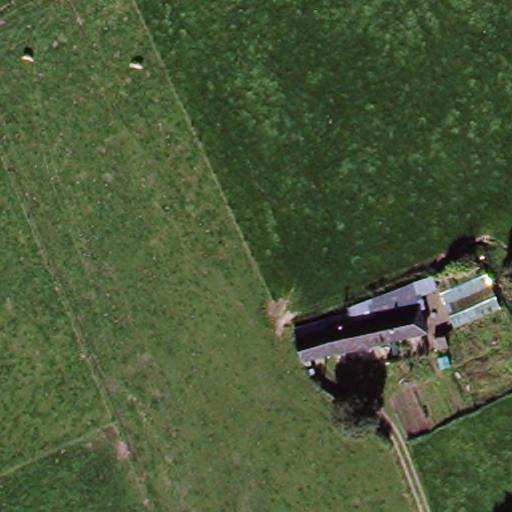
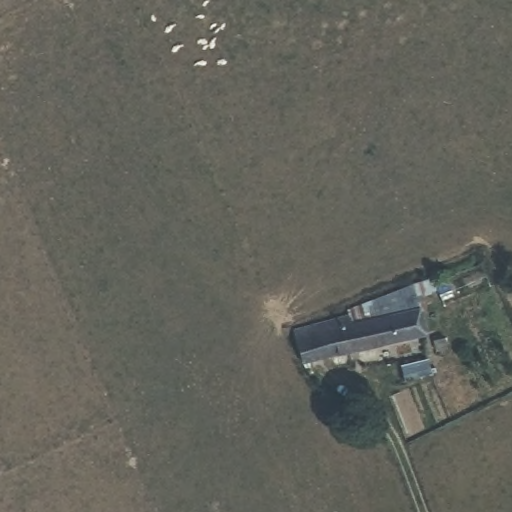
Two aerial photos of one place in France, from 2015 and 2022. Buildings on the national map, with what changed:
unchanged [(438,275),(441,277),(486,258),(506,303),(452,325),(443,295),(416,302),(425,335),(302,364),(290,327),(345,312),(346,305),(412,284),(438,275)]

